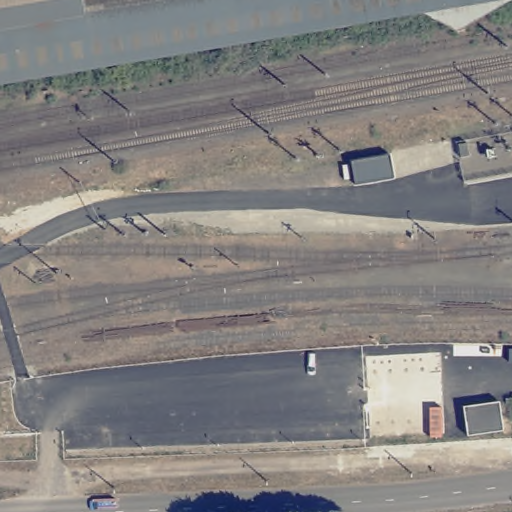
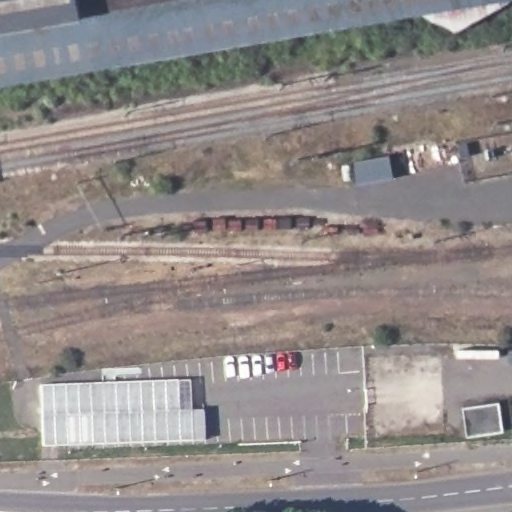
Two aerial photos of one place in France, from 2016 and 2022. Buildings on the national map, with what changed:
unchanged [(457,28),(421,9),(236,42),(0,84),(0,0),(503,0),(457,28)]
unchanged [(350,160),(390,154),(393,176),(353,182),(350,160)]
new [(39,383),(188,378),(190,408),(203,408),(205,440),(40,445),(39,383)]
unchanged [(501,401),(505,430),(469,434),(465,406),(501,401)]

